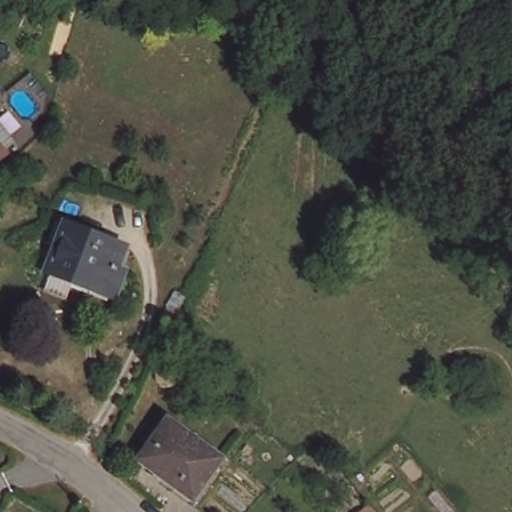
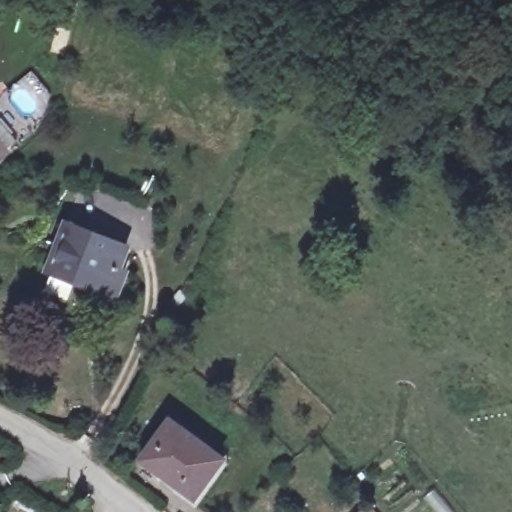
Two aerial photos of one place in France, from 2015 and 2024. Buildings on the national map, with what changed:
unchanged [(5,152),(7,154),(0,159),(0,122),(17,142),(5,152)]
unchanged [(67,244),(55,239),(62,220),(75,224),(75,221),(134,244),(125,266),(132,269),(123,294),(62,270),(71,245),(67,244)]
unchanged [(170,418),(223,458),(194,498),(165,476),(140,458),(170,418)]

